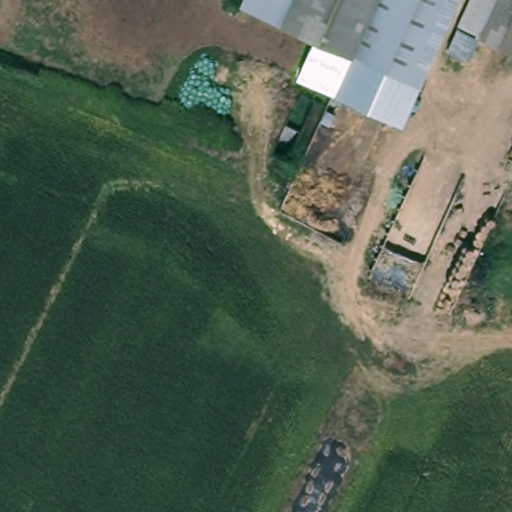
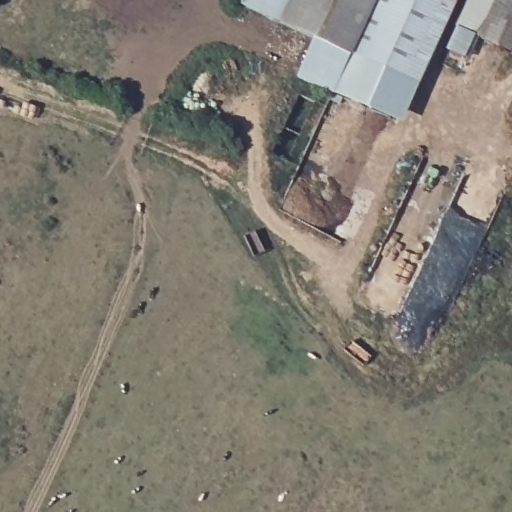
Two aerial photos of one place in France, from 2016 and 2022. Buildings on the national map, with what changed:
unchanged [(401,126),(297,78),(312,41),(238,7),(241,0),(457,0),(401,126)]
unchanged [(497,0),(512,0),(512,53),(478,36),(459,25),(471,0),(496,0),(497,0)]

